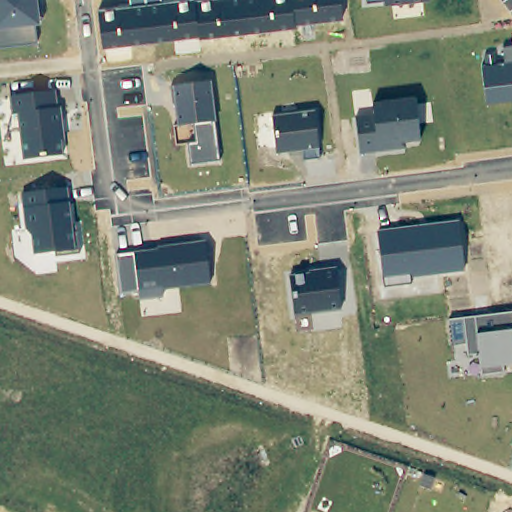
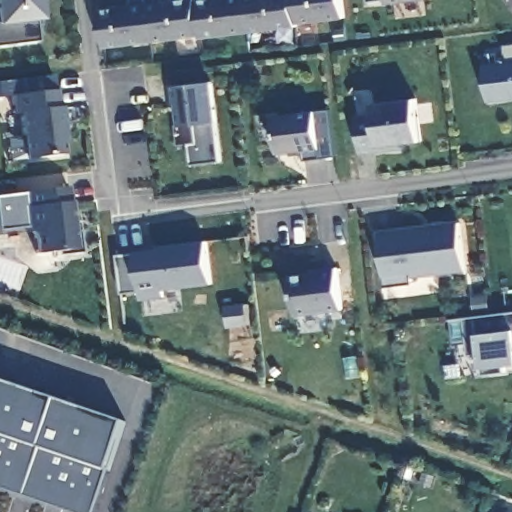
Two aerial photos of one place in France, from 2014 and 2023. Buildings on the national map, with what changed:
unchanged [(40,21),(34,23),(36,42),(0,47),(0,0),(38,0),(40,21)]
unchanged [(131,6),(129,0),(163,0),(163,2),(182,0),(197,0),(201,0),(342,0),(344,18),(296,24),(296,27),(200,39),(199,35),(104,47),(97,11),(131,6)]
unchanged [(366,1),(366,0),(373,0),(366,1)]
unchanged [(414,0),(384,4),(384,0),(414,0)]
unchanged [(483,65),(506,61),(504,46),(512,46),(512,101),(488,104),(483,65)]
unchanged [(191,165),(188,144),(198,142),(196,125),(178,127),(174,89),(210,83),(215,124),(220,161),(191,165)]
unchanged [(18,114),(12,115),(10,96),(55,91),(57,108),(61,107),(66,154),(23,160),(18,114)]
unchanged [(356,118),(375,115),(373,107),(414,101),(418,122),(421,141),(405,144),(406,150),(360,156),(356,118)]
unchanged [(304,162),(303,150),(276,154),(272,117),(315,112),(320,160),(304,162)]
unchanged [(32,234),(27,230),(24,196),(69,189),(73,225),(77,225),(80,254),(56,257),(55,251),(34,255),(32,234)]
unchanged [(377,231),(457,221),(464,271),(411,279),(413,284),(384,288),(377,231)]
unchanged [(116,256),(205,241),(211,283),(161,290),(162,297),(141,300),(139,290),(121,293),(116,256)]
unchanged [(289,275),(335,267),(341,310),(294,316),(289,275)]
unchanged [(479,354),(469,356),(464,320),(512,312),(512,365),(503,366),(504,373),(483,375),(479,354)]
new [(110,470),(95,512),(71,512),(0,488),(0,381),(125,423),(110,470)]

